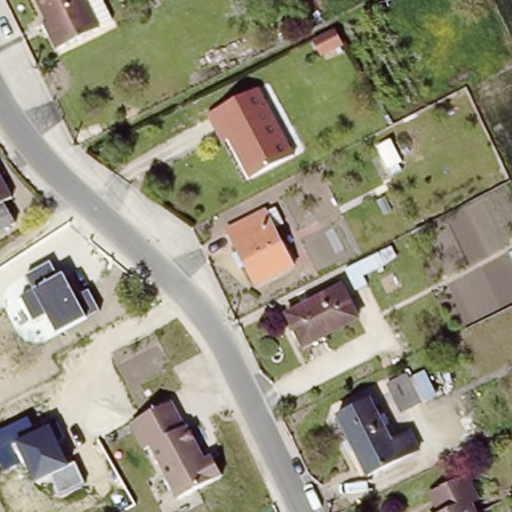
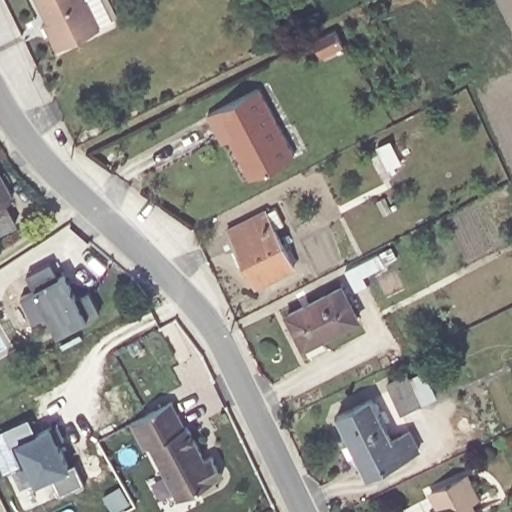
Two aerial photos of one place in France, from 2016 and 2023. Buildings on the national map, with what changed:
unchanged [(51,31),(36,0),(100,0),(110,24),(55,49),(47,34),(51,31)]
unchanged [(246,98),(262,90),(296,156),(278,165),(246,98)]
unchanged [(253,176),(230,132),(222,135),(212,115),(246,98),(278,165),(253,176)]
unchanged [(0,205),(0,186),(7,200),(0,205)]
unchanged [(0,234),(0,211),(10,229),(0,234)]
unchanged [(260,217),(262,219),(268,215),(277,234),(270,239),(289,272),(250,293),(221,239),(260,217)]
unchanged [(19,296),(33,287),(28,275),(50,263),(57,276),(63,272),(77,297),(90,290),(101,312),(58,333),(48,313),(33,322),(19,296)]
unchanged [(342,295),(356,326),(300,357),(284,324),(342,295)]
unchanged [(407,382),(420,410),(400,420),(386,393),(407,382)]
unchanged [(204,459),(210,455),(221,476),(177,500),(133,422),(175,400),(204,459)]
unchanged [(372,400),(395,442),(412,435),(422,451),(370,478),(337,418),(372,400)]
unchanged [(0,431),(27,417),(35,432),(52,423),(70,464),(75,462),(85,484),(60,497),(50,477),(36,483),(25,461),(5,470),(0,459),(0,431)]
unchanged [(432,499),(467,481),(477,501),(470,506),(473,512),(438,512),(432,499)]

